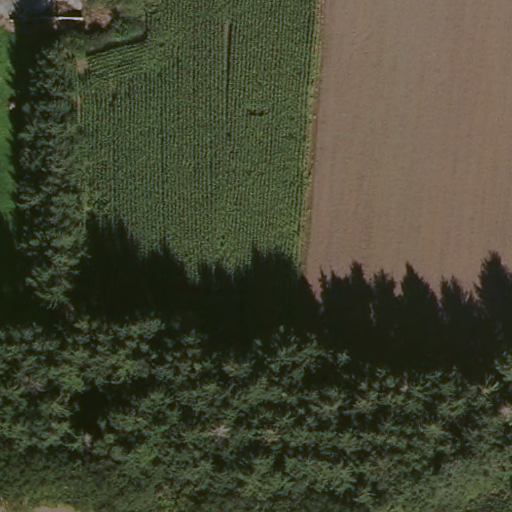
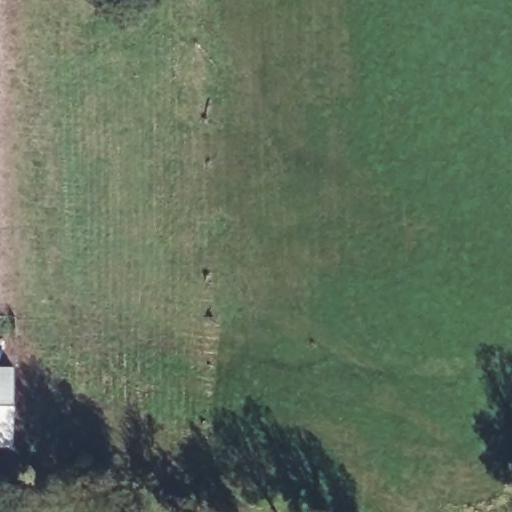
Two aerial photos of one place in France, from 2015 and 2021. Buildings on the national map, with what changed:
new [(14,445),(0,445),(0,366),(11,366),(14,445)]

